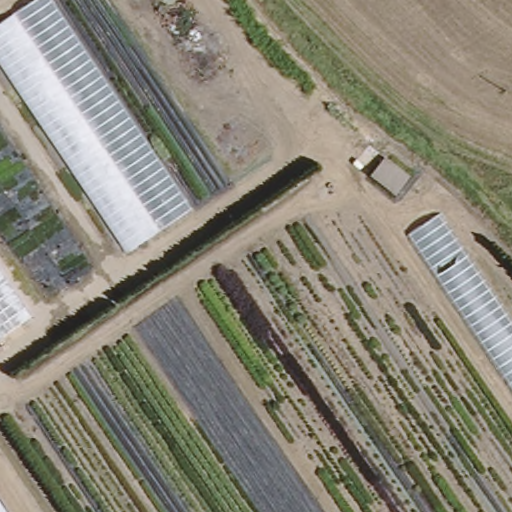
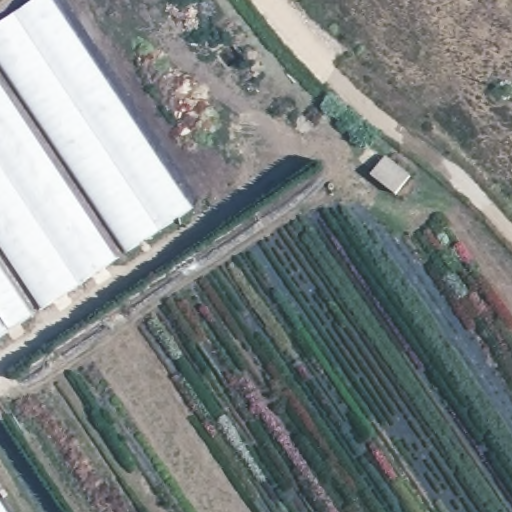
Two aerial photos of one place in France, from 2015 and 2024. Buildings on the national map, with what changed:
unchanged [(123,253),(0,68),(0,23),(35,0),(49,0),(186,209),(123,253)]
new [(43,310),(0,245),(0,84),(117,261),(43,310)]
unchanged [(414,179),(397,200),(368,177),(382,153),(414,179)]
demolished [(438,212),(512,319),(512,392),(407,234),(438,212)]
unchanged [(32,316),(0,337),(0,268),(32,316)]
unchanged [(10,512),(0,512),(0,497),(10,512)]

